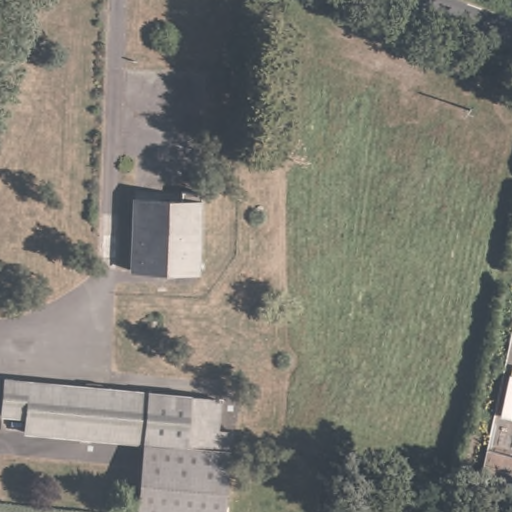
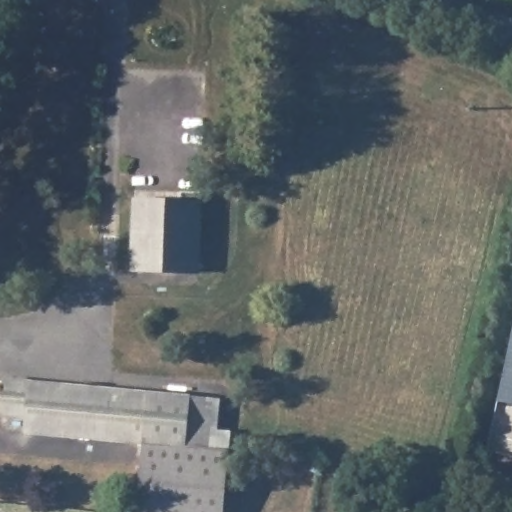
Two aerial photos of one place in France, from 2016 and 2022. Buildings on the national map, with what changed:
unchanged [(195,276),(125,276),(126,207),(171,207),(171,198),(196,199),(195,276)]
unchanged [(212,412),(211,415),(224,416),(218,512),(133,512),(139,445),(22,434),(23,420),(0,418),(0,377),(153,392),(176,395),(213,398),(212,412)]

